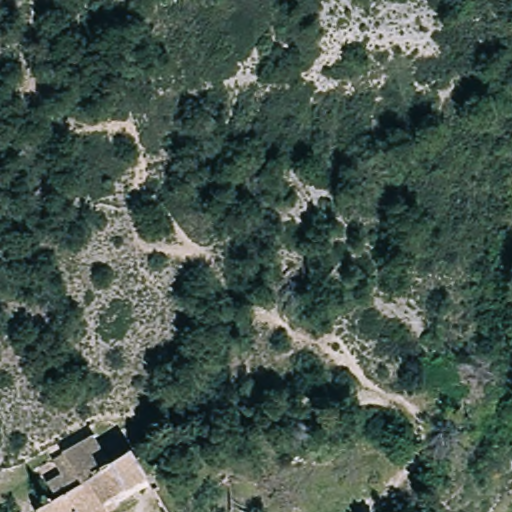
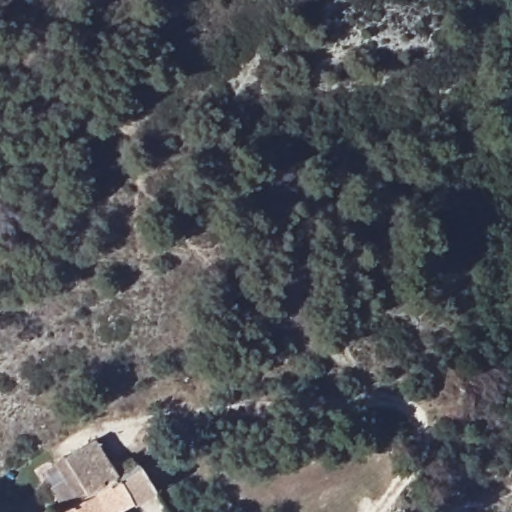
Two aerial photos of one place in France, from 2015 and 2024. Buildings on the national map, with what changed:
unchanged [(125,461),(130,469),(133,467),(149,492),(117,512),(57,512),(58,512),(48,493),(62,486),(52,468),(63,462),(93,445),(109,471),(125,461)]

